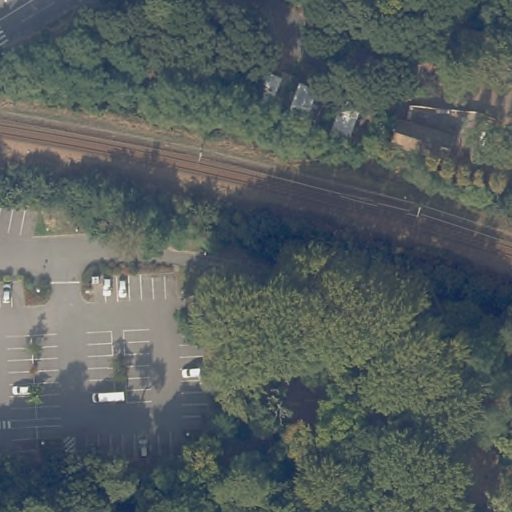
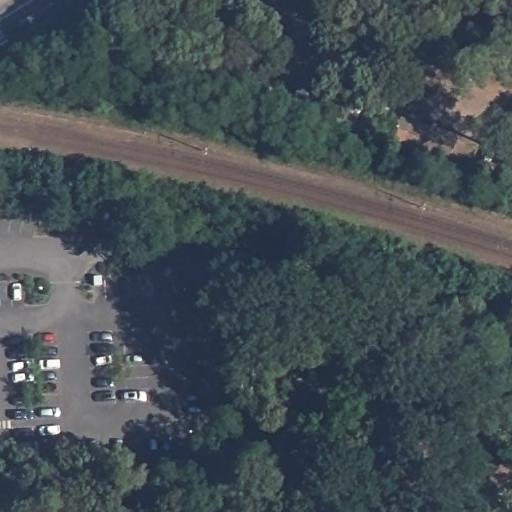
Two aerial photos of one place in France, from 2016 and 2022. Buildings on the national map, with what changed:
unchanged [(464,131),(457,154),(400,135),(407,114),(464,131)]

